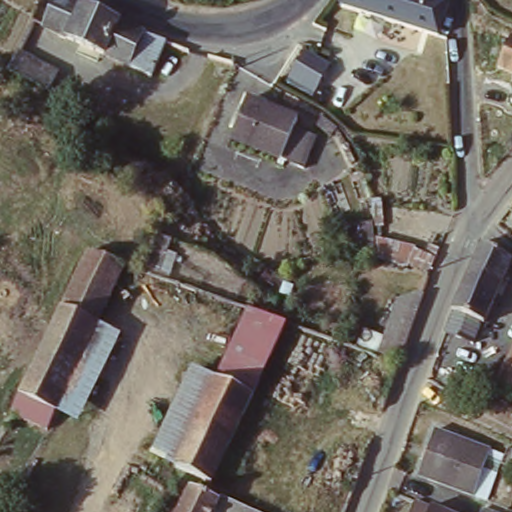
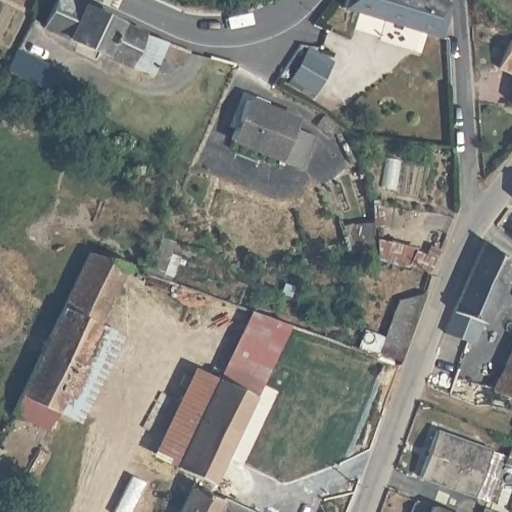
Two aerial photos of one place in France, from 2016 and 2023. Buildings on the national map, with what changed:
unchanged [(167,44),(151,74),(127,64),(44,26),(56,0),(68,0),(133,29),(139,33),(143,34),(150,37),(167,44)]
unchanged [(445,19),(440,35),(343,8),(345,0),(443,0),(450,2),(445,19)]
unchanged [(507,36),(512,39),(512,76),(494,67),(507,36)]
unchanged [(59,69),(50,87),(10,69),(21,49),(59,69)]
unchanged [(314,98),(286,81),(303,49),(331,64),(314,98)]
unchanged [(512,83),(512,106),(506,105),(512,83)]
unchanged [(299,128),(296,135),(317,147),(303,175),(233,143),(250,106),(299,128)]
unchanged [(484,240),(512,257),(484,319),(479,319),(469,340),(448,331),(484,240)]
unchanged [(101,324),(58,410),(49,428),(15,412),(94,251),(130,265),(101,324)]
unchanged [(414,269),(418,258),(439,259),(436,270),(414,269)]
unchanged [(402,294),(424,295),(399,364),(378,357),(402,294)]
unchanged [(256,321),(265,324),(277,329),(245,401),(224,391),(256,321)]
unchanged [(119,331),(76,419),(58,410),(101,324),(119,331)]
unchanged [(493,390),(512,354),(512,400),(501,395),(493,390)]
unchanged [(150,464),(191,376),(209,384),(168,473),(150,464)]
unchanged [(168,473),(209,384),(224,391),(245,401),(203,490),(188,482),(168,473)]
unchanged [(506,459),(487,504),(421,476),(440,431),(506,459)]
unchanged [(182,494),(209,507),(211,503),(232,512),(172,512),(182,494)]
unchanged [(419,500),(447,512),(413,512),(419,500)]
unchanged [(485,508),(496,512),(483,512),(485,508)]

